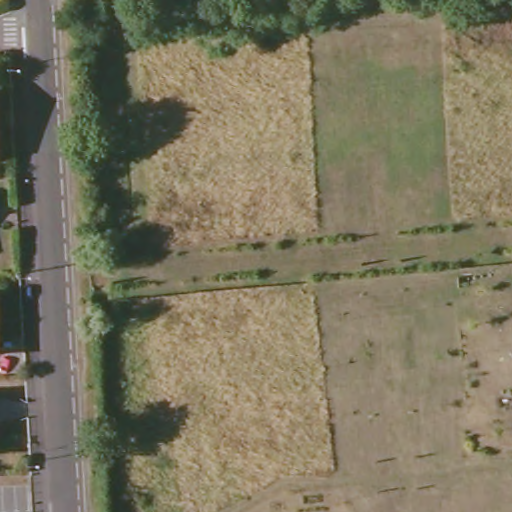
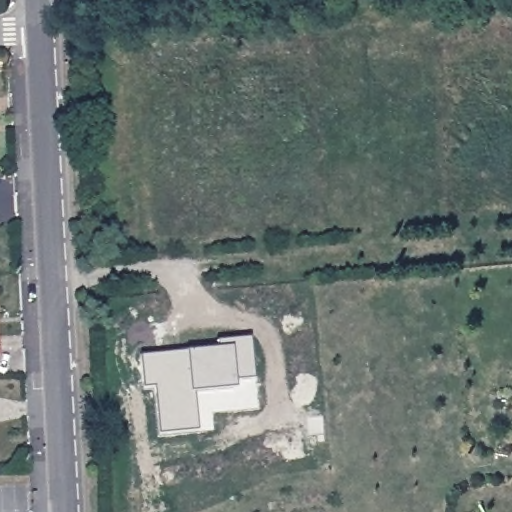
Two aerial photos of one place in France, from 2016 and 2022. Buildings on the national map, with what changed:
new [(143,394),(140,361),(218,353),(217,346),(251,343),(256,385),(236,387),(237,394),(195,398),(198,437),(159,440),(156,403),(154,393),(143,394)]

